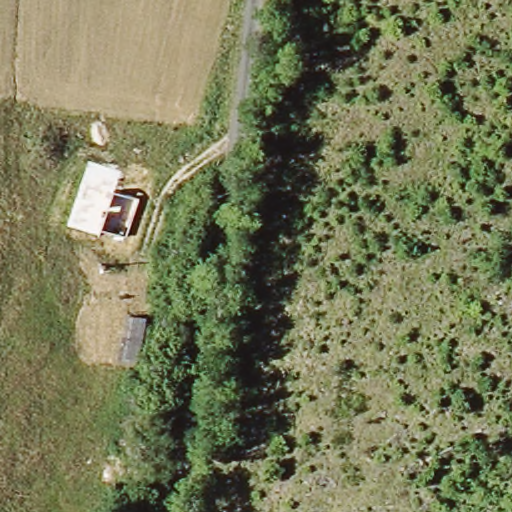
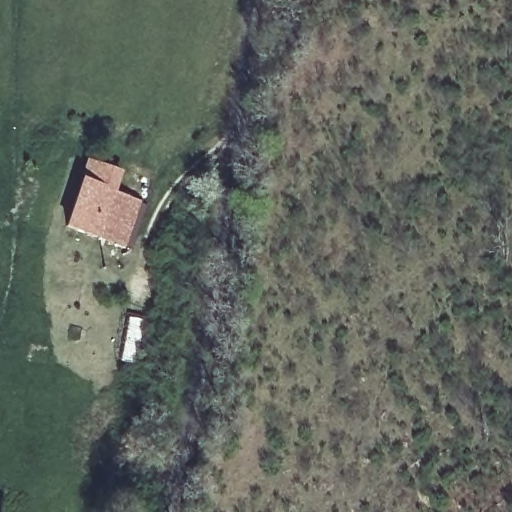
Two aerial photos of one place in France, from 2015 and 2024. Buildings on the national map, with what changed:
new [(123,171),(116,192),(143,200),(128,247),(64,227),(80,180),(87,159),(123,171)]
unchanged [(117,363),(128,313),(155,324),(142,373),(117,363)]

